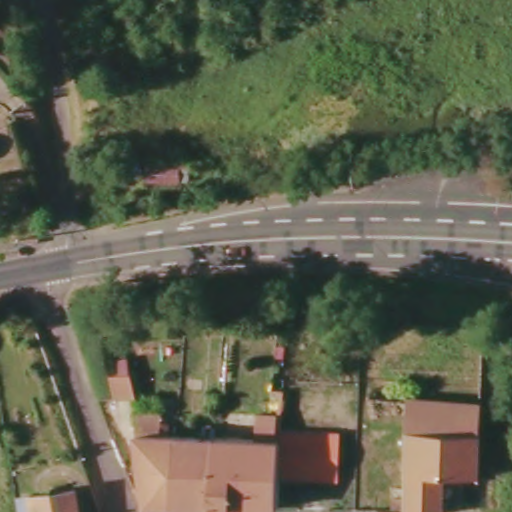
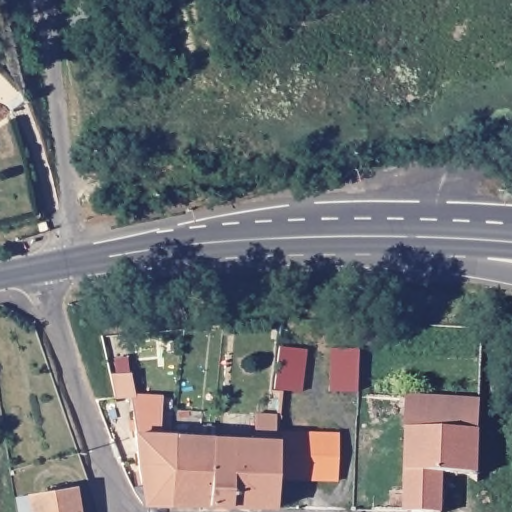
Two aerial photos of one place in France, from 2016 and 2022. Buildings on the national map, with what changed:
unchanged [(147,166),(181,164),(183,179),(148,181),(147,166)]
new [(273,348),(298,349),(296,393),(270,391),(273,348)]
new [(329,351),(356,351),(355,396),(327,394),(329,351)]
unchanged [(110,376),(132,375),(136,399),(116,400),(115,398),(110,376)]
unchanged [(404,498),(406,398),(480,402),(479,432),(442,431),(441,475),(440,512),(391,512),(391,498),(404,498)]
unchanged [(136,433),(133,411),(161,412),(159,435),(173,436),(170,505),(145,505),(145,504),(136,433)]
unchanged [(211,437),(253,439),(254,429),(276,430),(276,431),(274,478),(274,507),(206,505),(211,437)]
unchanged [(276,431),(333,433),(331,479),(274,478),(276,431)]
unchanged [(442,431),(479,432),(478,456),(478,474),(441,475),(442,431)]
unchanged [(173,436),(211,437),(206,505),(170,505),(173,436)]
unchanged [(30,497),(73,490),(77,512),(32,512),(30,497)]

